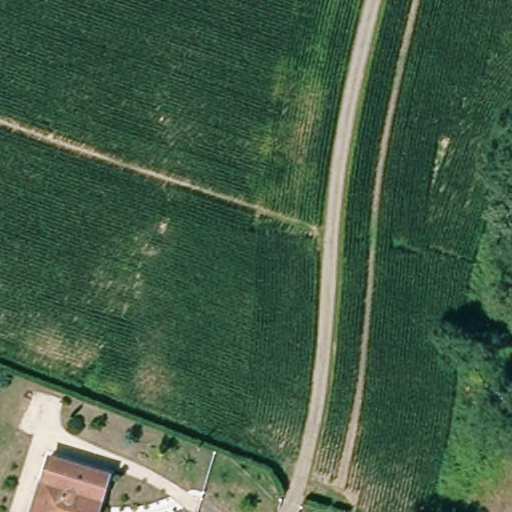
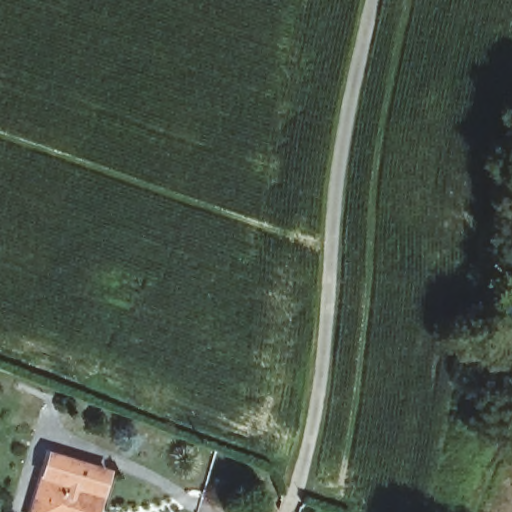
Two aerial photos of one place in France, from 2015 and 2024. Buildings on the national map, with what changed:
unchanged [(43,482),(47,462),(49,457),(107,469),(100,512),(36,512),(43,482)]

